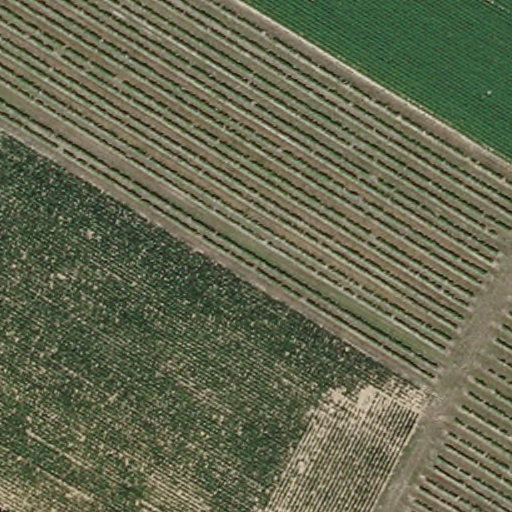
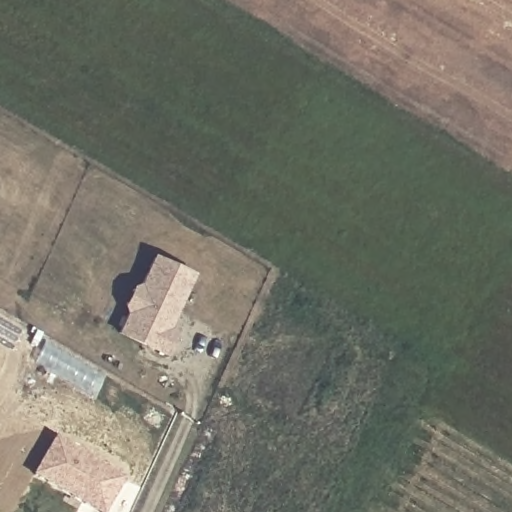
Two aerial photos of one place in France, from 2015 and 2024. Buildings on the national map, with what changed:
new [(165,358),(156,354),(111,332),(122,312),(118,307),(125,291),(132,292),(149,257),(193,279),(167,332),(176,336),(165,358)]
new [(36,474),(56,441),(124,480),(106,512),(97,512),(36,474)]

